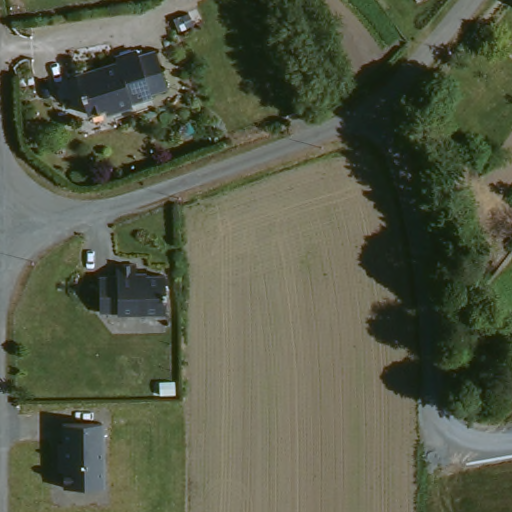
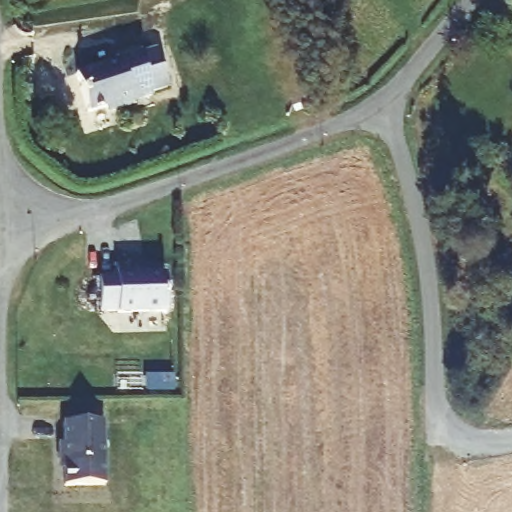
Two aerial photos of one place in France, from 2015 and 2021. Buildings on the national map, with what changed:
unchanged [(151,95),(131,101),(132,104),(112,110),(105,107),(87,112),(75,74),(117,61),(116,56),(137,49),(151,95)]
unchanged [(164,316),(92,314),(92,274),(161,275),(164,316)]
unchanged [(104,421),(105,485),(62,485),(63,420),(104,421)]

